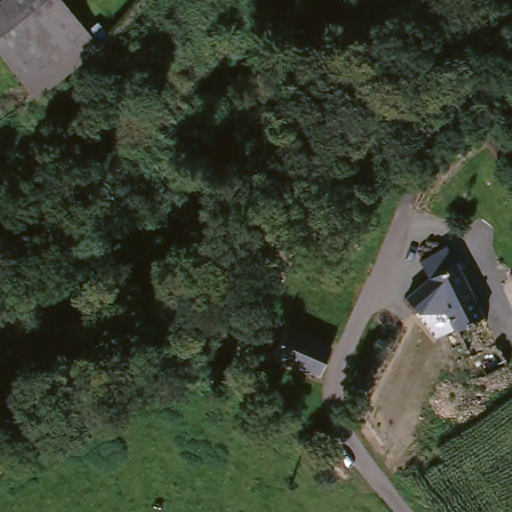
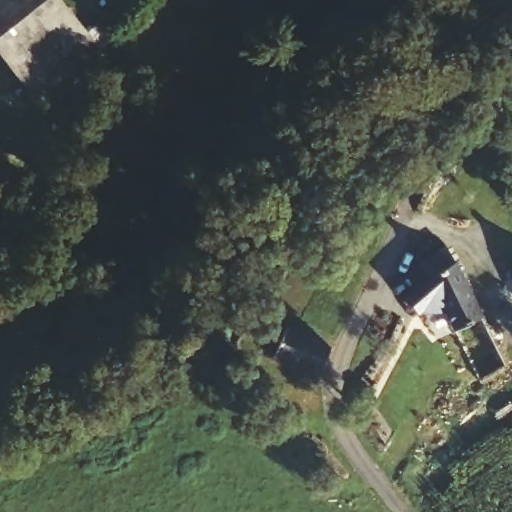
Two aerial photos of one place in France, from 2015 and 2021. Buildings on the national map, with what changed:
unchanged [(0,65),(0,5),(6,0),(51,0),(82,40),(35,77),(20,89),(0,65)]
unchanged [(451,333),(441,315),(423,284),(451,265),(471,299),(480,317),(451,333)]
unchanged [(316,376),(275,367),(281,338),(321,348),(316,376)]

